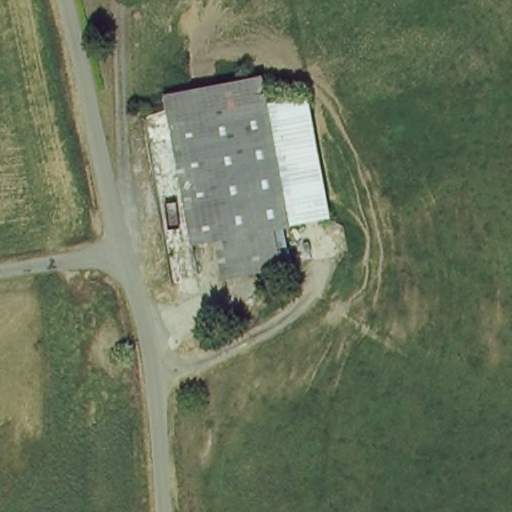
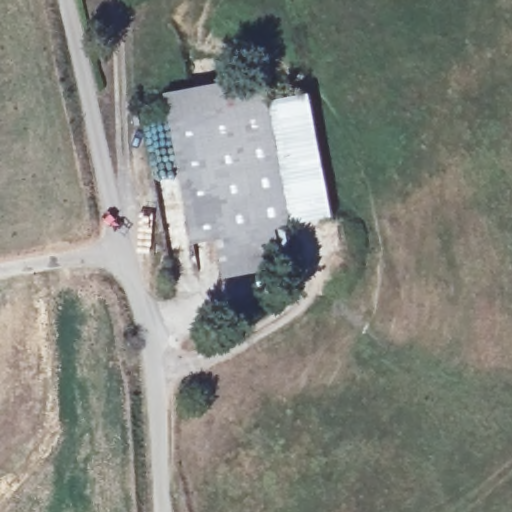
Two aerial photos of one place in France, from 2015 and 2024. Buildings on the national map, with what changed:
unchanged [(265,78),(270,108),(173,125),(166,95),(265,78)]
unchanged [(308,101),(331,221),(292,228),(270,108),(308,101)]
unchanged [(225,275),(219,241),(196,245),(173,125),(270,108),(292,228),(279,230),(249,235),(254,269),(225,275)]
unchanged [(285,262),(254,269),(249,235),(279,230),(285,262)]

